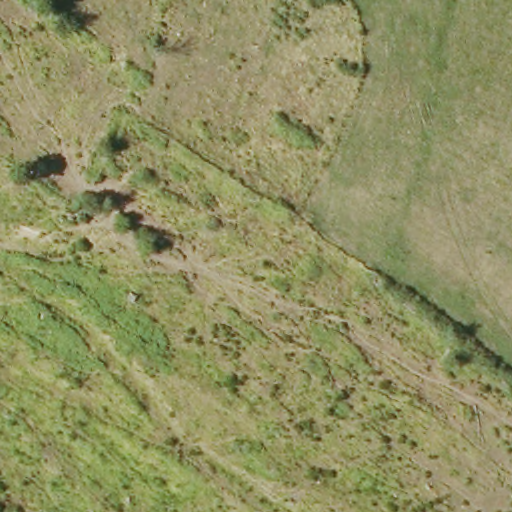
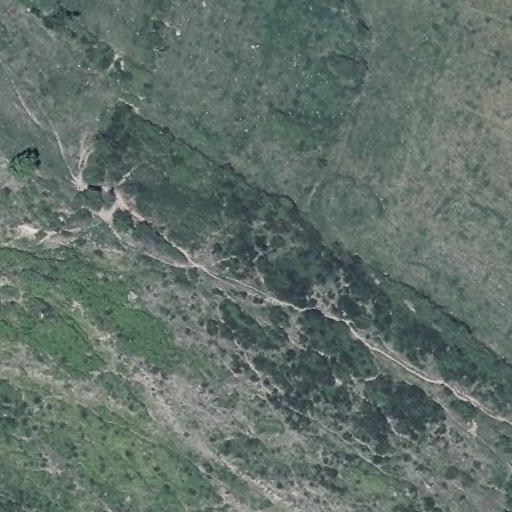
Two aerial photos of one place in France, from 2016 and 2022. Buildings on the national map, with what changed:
[]

